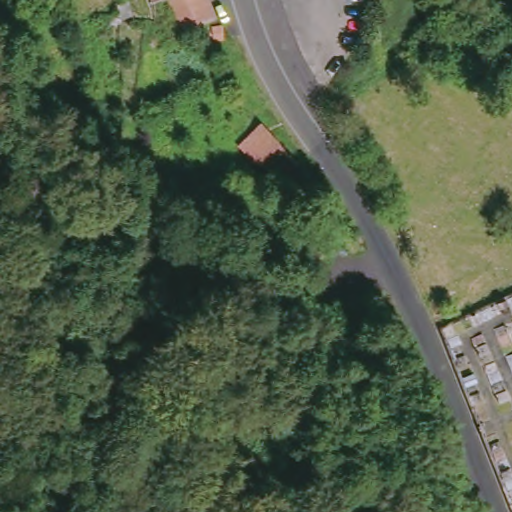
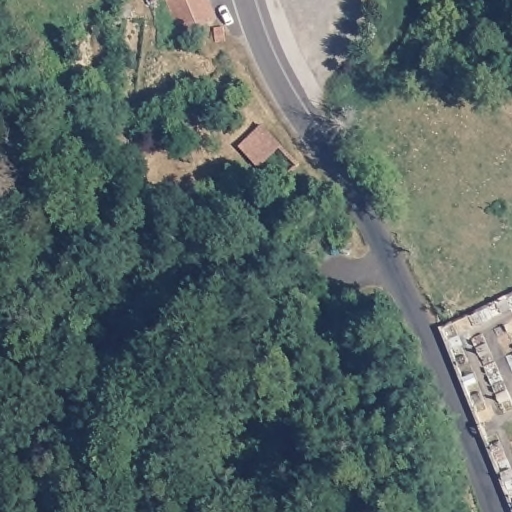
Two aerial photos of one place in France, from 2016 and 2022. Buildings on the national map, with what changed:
unchanged [(202,23),(181,29),(171,0),(210,0),(215,19),(202,23)]
unchanged [(260,145),(280,125),(297,142),(278,162),(260,145)]

